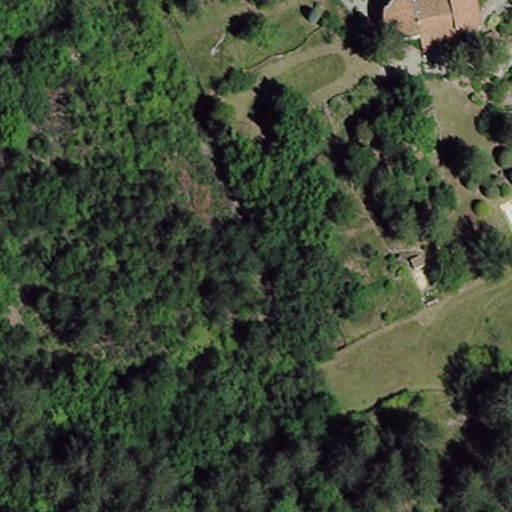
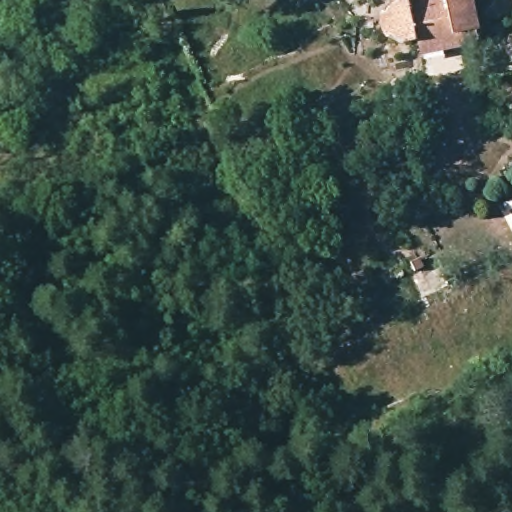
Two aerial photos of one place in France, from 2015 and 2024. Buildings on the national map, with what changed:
unchanged [(422,48),(420,39),(413,40),(404,38),(398,32),(395,25),(395,21),(395,15),(396,10),(399,5),(404,1),(406,0),(479,0),(483,25),(485,35),(422,48)]

